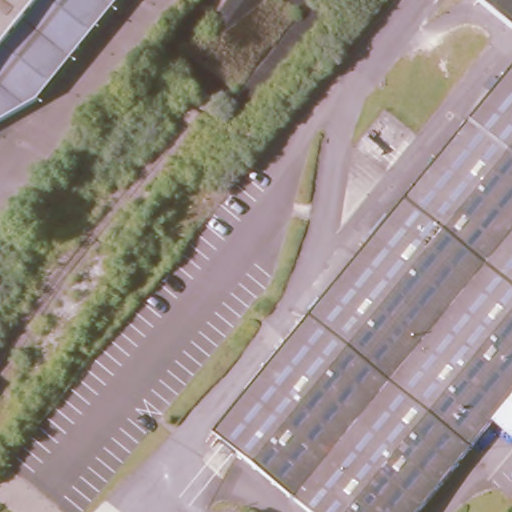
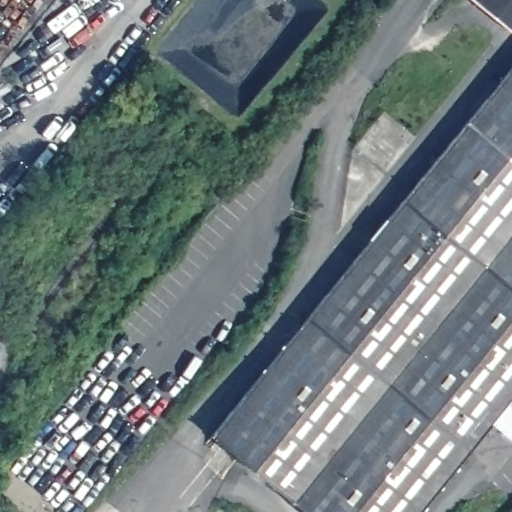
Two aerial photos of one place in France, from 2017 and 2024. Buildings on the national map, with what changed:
demolished [(64,22),(75,39),(23,72),(33,90),(0,112),(0,0),(99,0),(64,22)]
unchanged [(512,3),(500,17),(479,0),(512,0),(512,3)]
unchanged [(512,3),(512,27),(500,17),(512,3)]
unchanged [(492,420),(417,512),(312,512),(213,432),(512,66),(512,436),(511,437),(492,420)]

